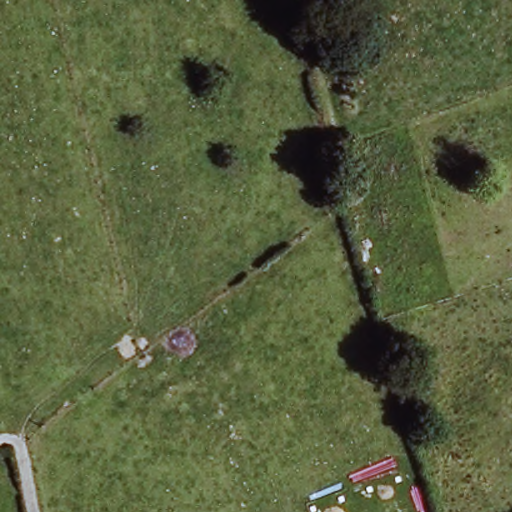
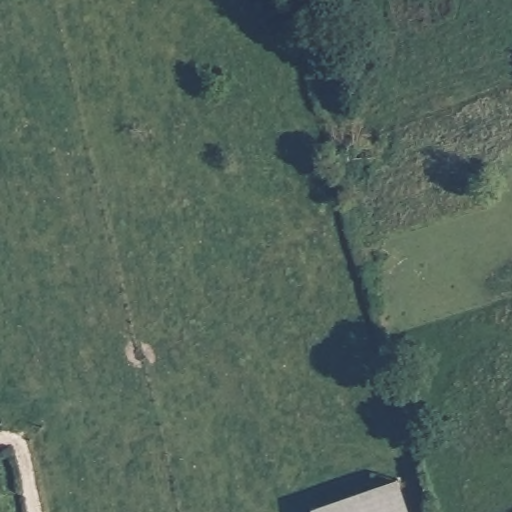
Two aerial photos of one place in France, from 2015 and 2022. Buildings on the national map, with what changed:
new [(412,512),(314,512),(312,509),(400,479),(412,512)]

